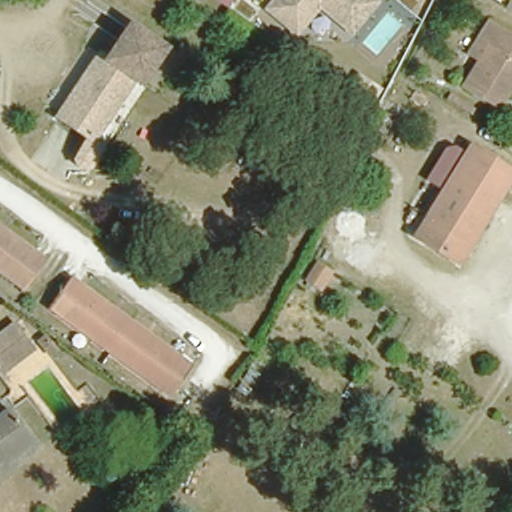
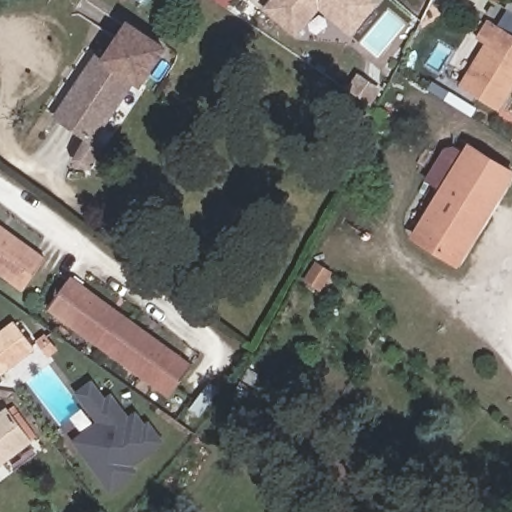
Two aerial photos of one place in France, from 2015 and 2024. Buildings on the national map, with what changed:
unchanged [(375,1),(350,31),(318,4),(316,7),(309,7),(291,29),(265,6),(271,0),(373,0),(375,1)]
unchanged [(512,29),(512,52),(512,69),(490,101),(458,80),(487,36),(475,25),(486,11),(512,29)]
unchanged [(136,75),(128,70),(89,133),(56,110),(94,49),(101,54),(124,18),(159,40),(136,75)]
unchanged [(467,144),(510,169),(455,256),(416,230),(467,144)]
unchanged [(0,228),(43,258),(25,281),(0,263),(0,228)]
unchanged [(194,361),(166,395),(46,308),(68,273),(194,361)]
unchanged [(31,340),(0,365),(0,326),(13,315),(31,340)]
new [(74,392),(92,380),(105,398),(111,393),(126,417),(135,410),(144,424),(148,421),(163,443),(134,465),(138,471),(109,493),(71,440),(96,421),(74,392)]
unchanged [(31,436),(0,460),(0,413),(11,406),(31,436)]

